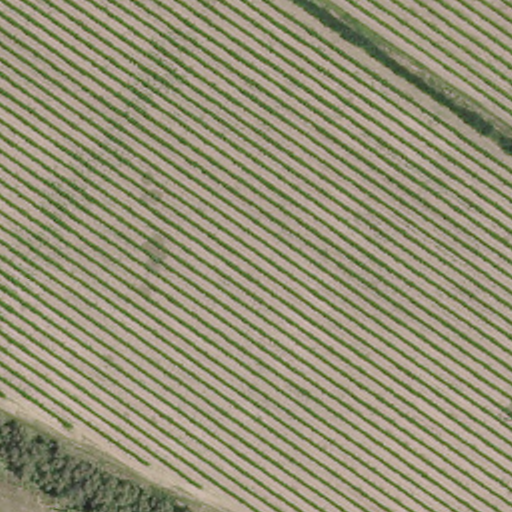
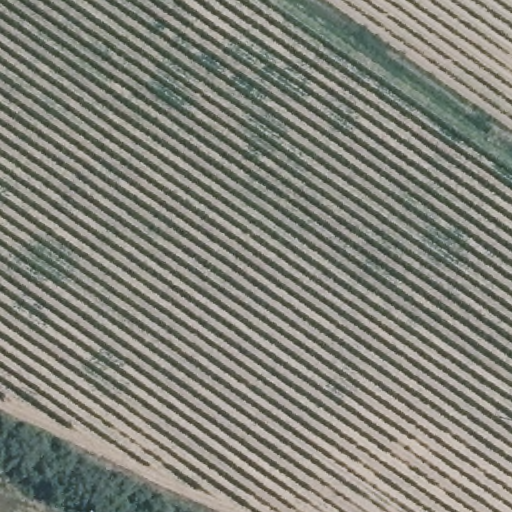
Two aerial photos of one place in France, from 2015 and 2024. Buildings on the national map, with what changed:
[]

